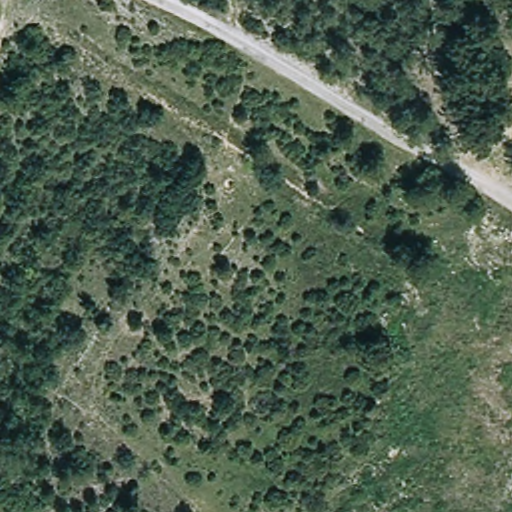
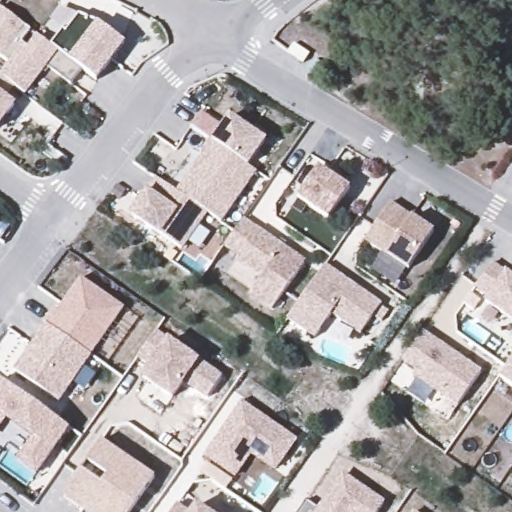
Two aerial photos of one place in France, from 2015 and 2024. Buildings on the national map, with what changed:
new [(31,30),(22,42),(27,47),(36,35),(57,50),(55,53),(65,60),(79,71),(69,84),(46,67),(25,96),(15,88),(0,76),(0,75),(7,64),(0,58),(0,8),(31,30)]
new [(55,53),(67,36),(70,38),(82,21),(99,27),(128,49),(100,87),(65,60),(55,53)]
new [(293,48),(309,57),(303,66),(287,57),(293,48)]
new [(15,88),(7,97),(17,105),(0,127),(0,76),(15,88)]
new [(266,141),(248,168),(211,142),(208,140),(191,127),(201,112),(221,126),(229,115),(266,141)]
new [(256,173),(221,223),(207,214),(176,192),(200,156),(198,154),(208,140),(248,168),(256,173)]
new [(319,167),(349,189),(328,220),(297,199),(319,167)]
new [(128,215),(146,190),(155,177),(176,192),(207,214),(182,250),(162,237),(128,215)]
new [(390,202),(411,217),(433,232),(407,271),(385,255),(364,240),(390,202)]
new [(243,219),(257,228),(304,261),(270,310),(248,295),(260,278),(234,259),(237,256),(223,246),(243,219)]
new [(505,272),(512,277),(512,323),(483,302),(487,297),(474,288),(492,262),(505,272)]
new [(325,265),(381,304),(359,335),(331,316),(314,338),(287,319),(325,265)]
new [(56,315),(60,318),(83,285),(127,315),(93,362),(49,331),(47,329),(56,315)]
new [(49,331),(93,362),(61,408),(17,377),(49,331)]
new [(402,361),(423,331),(481,372),(457,408),(411,376),(414,371),(402,361)]
new [(154,335),(196,364),(171,400),(142,380),(151,368),(137,359),(154,335)]
new [(512,387),(500,378),(512,362),(512,387)]
new [(3,386),(55,422),(72,434),(38,481),(20,468),(35,445),(8,425),(0,437),(0,390),(3,386)]
new [(237,407),(291,444),(271,473),(246,456),(230,479),(201,459),(237,407)]
new [(149,481),(128,512),(76,512),(58,499),(96,444),(149,481)]
new [(342,473),(384,502),(377,512),(297,512),(306,499),(317,507),(342,473)]
new [(169,512),(174,504),(188,512),(169,512)]
new [(206,512),(191,512),(195,505),(206,512)]

